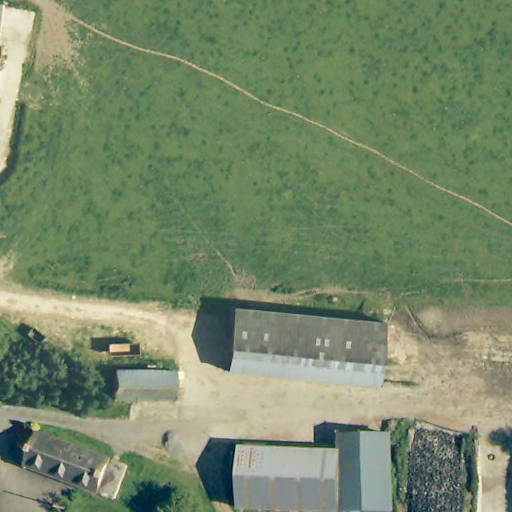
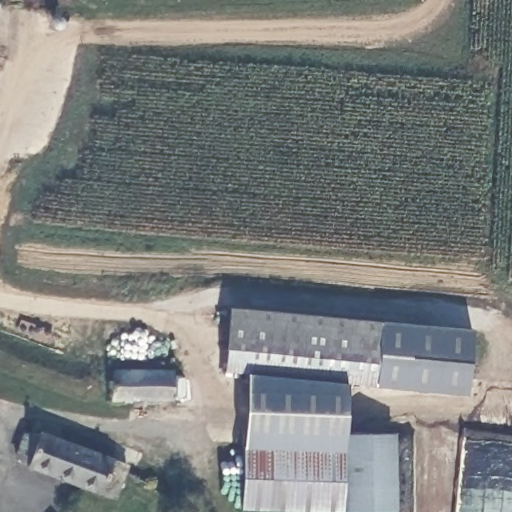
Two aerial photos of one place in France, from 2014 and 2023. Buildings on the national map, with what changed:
unchanged [(378,320),(373,382),(372,385),(297,378),(226,372),(232,306),(378,320)]
new [(373,382),(378,320),(473,328),(467,396),(372,385),(373,382)]
unchanged [(174,398),(117,398),(117,368),(174,367),(174,398)]
new [(350,433),(349,452),(247,448),(242,373),(297,378),(341,382),(341,432),(351,433),(350,433)]
unchanged [(128,463),(122,475),(135,480),(126,498),(42,463),(44,458),(31,452),(39,435),(54,433),(55,431),(128,463)]
unchanged [(350,433),(395,435),(394,457),(392,499),(392,512),(354,512),(291,510),(245,508),(246,485),(247,448),(349,452),(350,433)]

